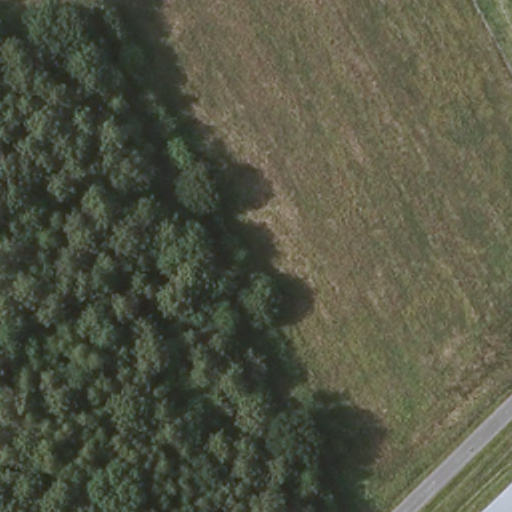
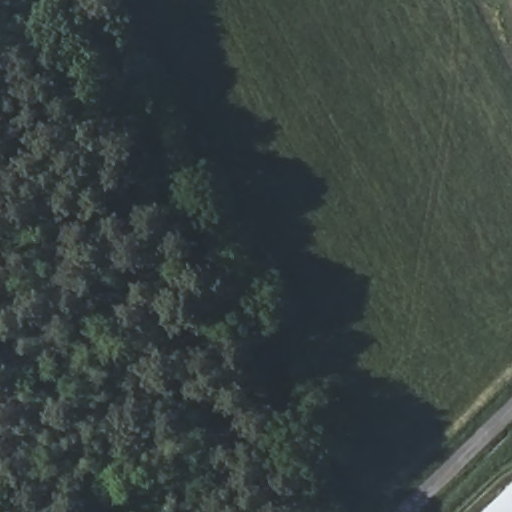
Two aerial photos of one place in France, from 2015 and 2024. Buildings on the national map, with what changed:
unchanged [(512,485),(512,512),(483,512),(512,485)]

